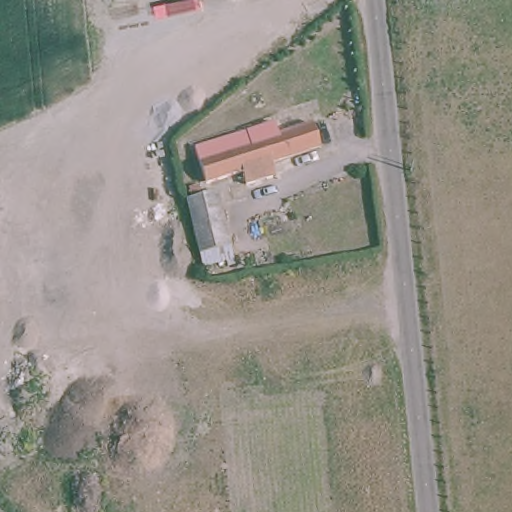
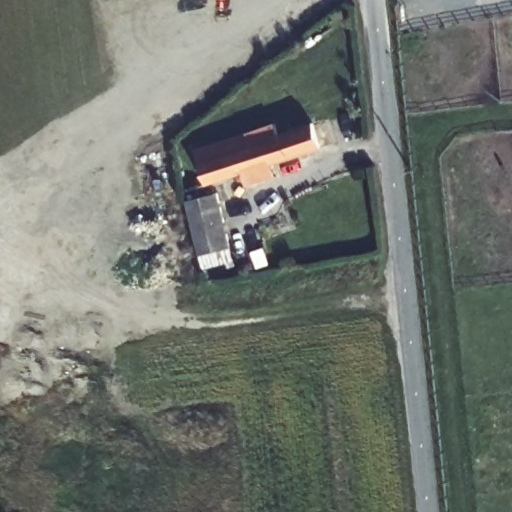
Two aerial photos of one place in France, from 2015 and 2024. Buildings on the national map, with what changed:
unchanged [(246,142),(243,136),(270,128),(266,116),(284,109),(288,124),(307,118),(309,125),(320,122),(329,147),(201,186),(186,150),(217,140),(221,149),(246,142)]
unchanged [(184,202),(218,195),(235,258),(215,265),(211,251),(196,256),(184,202)]

